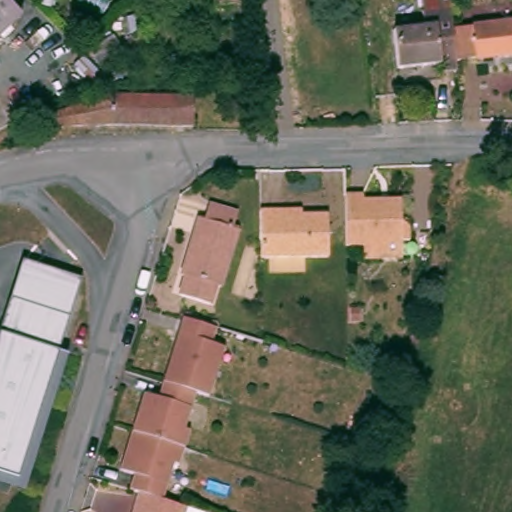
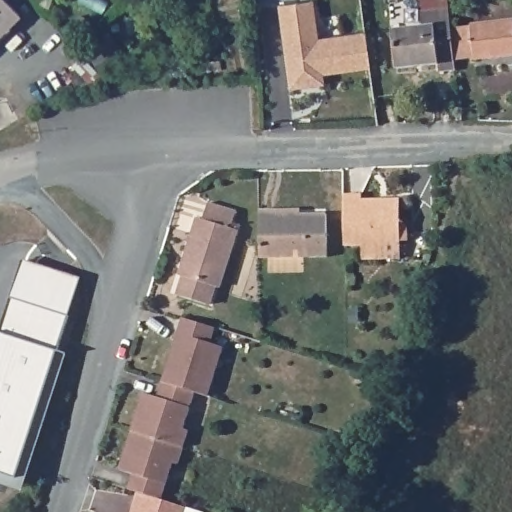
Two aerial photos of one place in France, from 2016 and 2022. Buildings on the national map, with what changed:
unchanged [(0,32),(0,0),(9,0),(21,12),(0,32)]
unchanged [(425,7),(424,0),(450,0),(450,4),(452,25),(455,56),(457,67),(439,69),(438,60),(398,64),(393,26),(424,23),(423,7),(425,7)]
new [(315,4),(320,42),(367,35),(372,70),(325,77),(326,87),(291,92),(280,8),(315,4)]
unchanged [(452,25),(512,19),(512,51),(455,56),(452,25)]
unchanged [(54,111),(107,94),(189,96),(188,127),(118,125),(40,127),(41,114),(54,111)]
unchanged [(410,217),(411,217),(412,217),(413,217),(414,217),(415,218),(415,219),(416,219),(416,220),(417,220),(417,221),(417,222),(418,222),(418,223),(418,224),(418,235),(374,236),(374,240),(356,241),(355,241),(355,234),(355,227),(355,220),(354,206),(354,199),(354,192),(354,189),(372,189),(372,194),(410,193),(410,217)]
unchanged [(186,272),(182,270),(191,242),(195,229),(200,213),(205,215),(210,197),(239,207),(234,224),(239,225),(221,282),(217,281),(211,300),(180,290),(186,272)]
unchanged [(297,207),(297,214),(324,213),(325,256),(256,257),(255,222),(255,208),(275,207),(297,207)]
unchanged [(22,262),(79,278),(26,494),(0,484),(0,331),(22,262)]
unchanged [(175,429),(170,447),(130,433),(139,401),(141,395),(155,399),(160,385),(179,318),(203,326),(198,341),(212,345),(196,396),(181,391),(175,412),(170,428),(175,429)]
unchanged [(170,447),(164,464),(171,466),(159,503),(136,497),(126,493),(132,477),(118,472),(130,433),(170,447)]
unchanged [(159,503),(183,511),(187,512),(131,512),(136,497),(159,503)]

